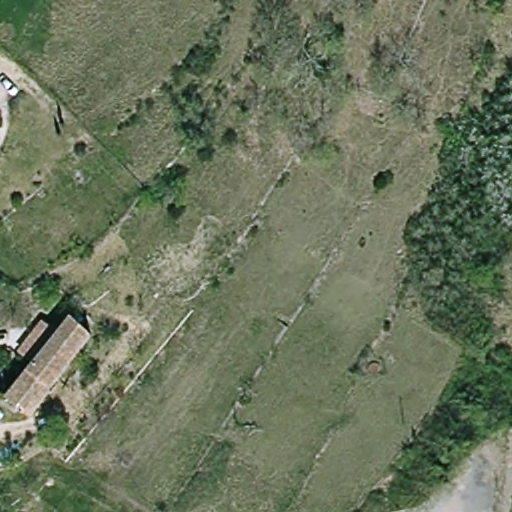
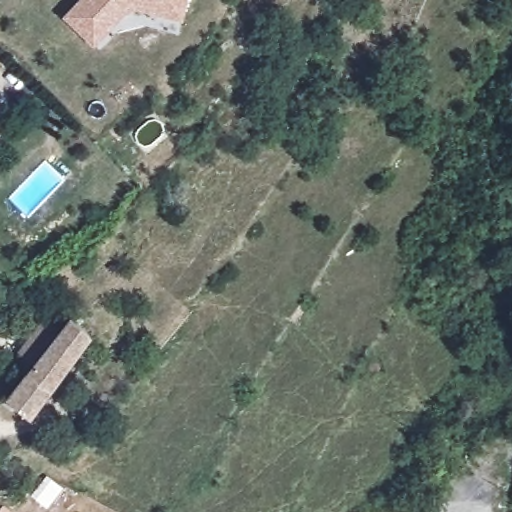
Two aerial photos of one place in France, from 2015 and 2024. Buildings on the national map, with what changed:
new [(71,0),(180,0),(175,20),(131,7),(118,10),(111,17),(86,41),(58,12),(69,2),(71,0)]
unchanged [(97,333),(38,419),(10,399),(35,364),(20,353),(42,321),(57,332),(70,315),(97,333)]

